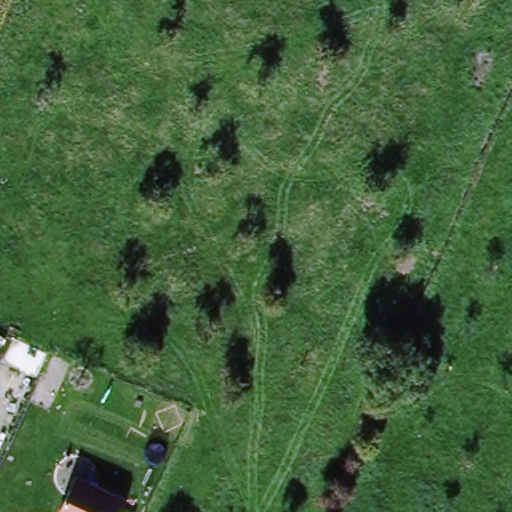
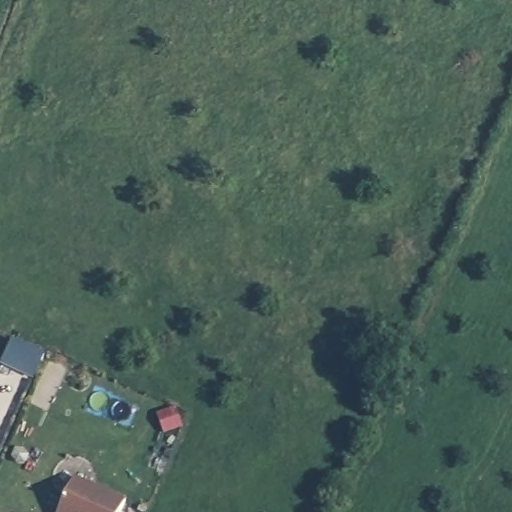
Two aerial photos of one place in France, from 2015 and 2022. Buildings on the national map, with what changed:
new [(47,355),(35,381),(2,363),(15,339),(47,355)]
unchanged [(128,500),(123,512),(59,512),(75,476),(128,500)]

